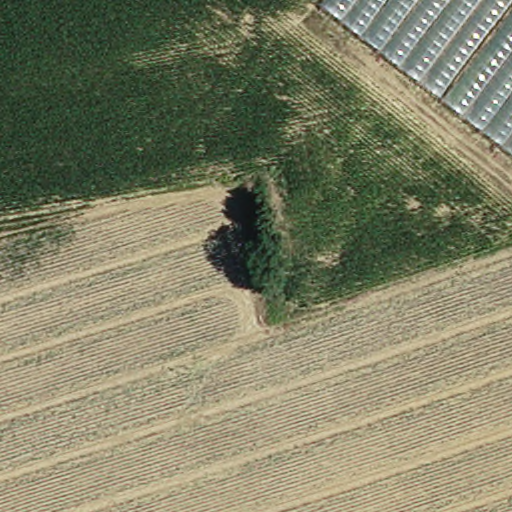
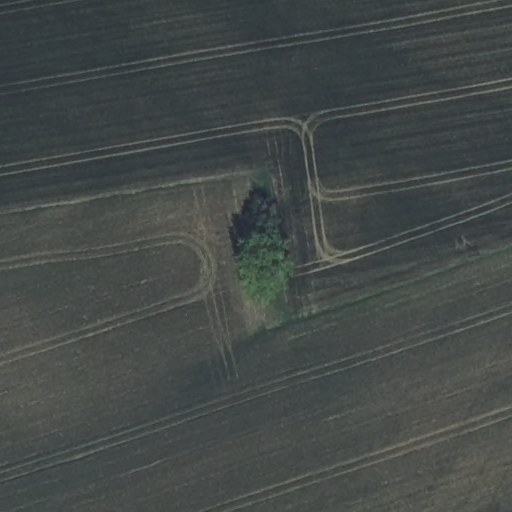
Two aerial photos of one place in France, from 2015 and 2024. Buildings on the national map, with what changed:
demolished [(512,0),(512,150),(326,7),(331,0),(512,0)]

